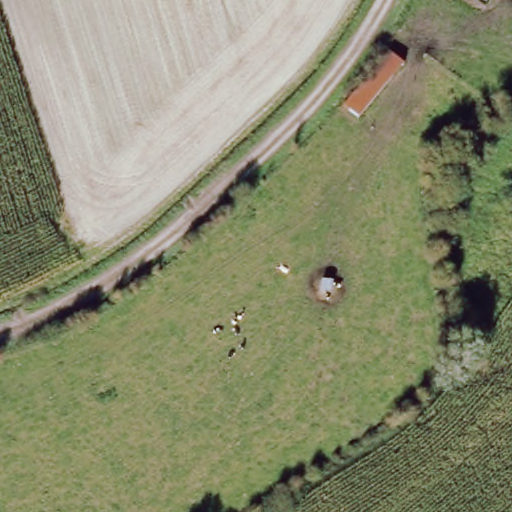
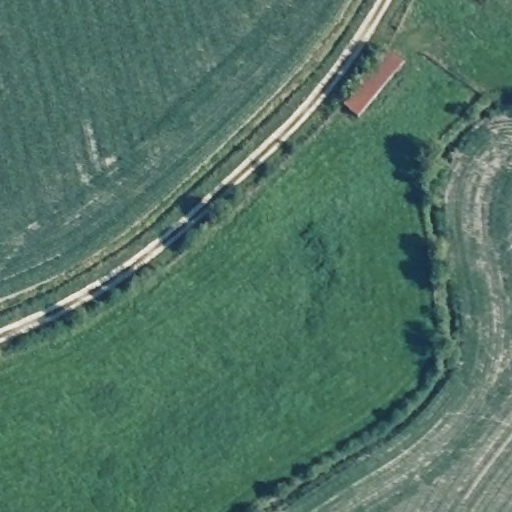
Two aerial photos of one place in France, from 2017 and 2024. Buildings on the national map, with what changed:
unchanged [(343,100),(389,48),(403,63),(357,114),(343,100)]

